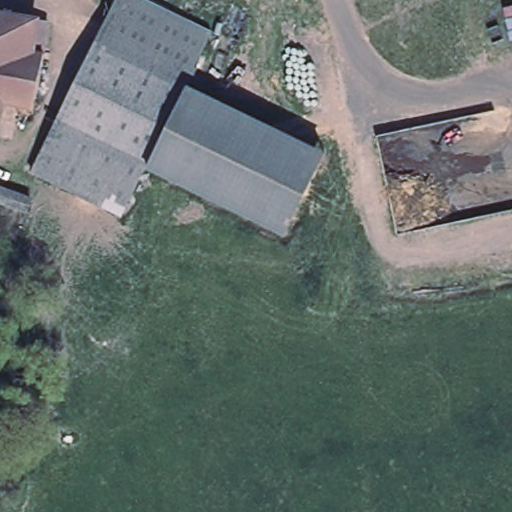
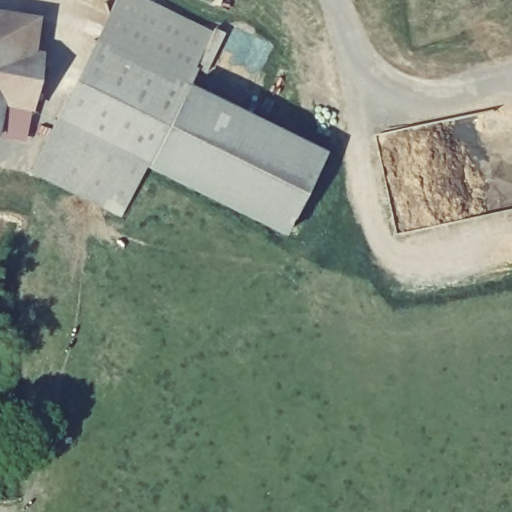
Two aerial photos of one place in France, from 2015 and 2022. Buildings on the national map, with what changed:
unchanged [(140,0),(211,34),(187,84),(96,41),(116,0),(140,0)]
unchanged [(25,45),(36,47),(26,110),(10,108),(12,92),(0,91),(0,61),(1,47),(0,47),(0,11),(30,16),(25,45)]
unchanged [(187,84),(147,167),(57,123),(96,41),(187,84)]
unchanged [(0,61),(0,47),(1,47),(0,61)]
unchanged [(187,84),(322,152),(282,235),(147,167),(187,84)]
unchanged [(147,167),(146,169),(125,216),(33,172),(57,123),(147,167)]

